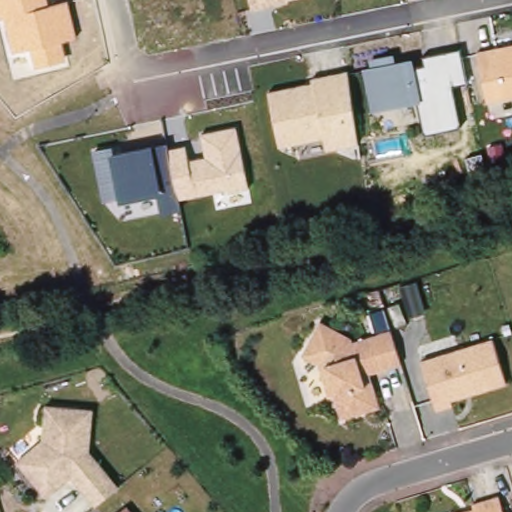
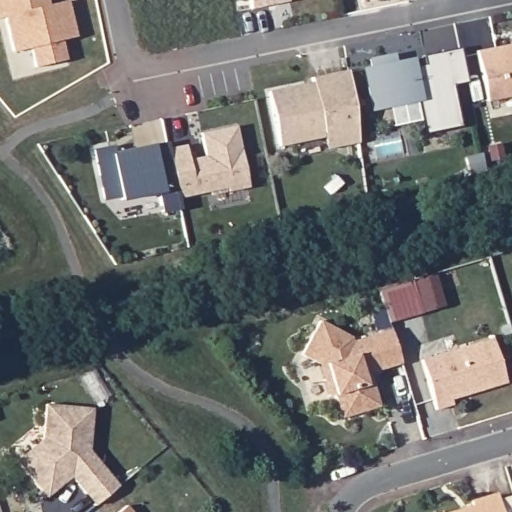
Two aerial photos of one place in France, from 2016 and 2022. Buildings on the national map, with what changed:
unchanged [(49,5),(69,0),(77,38),(62,42),(66,60),(33,67),(30,49),(12,53),(5,19),(0,20),(0,0),(48,0),(49,5)]
unchanged [(249,0),(288,0),(288,2),(251,8),(249,0)]
unchanged [(512,43),(512,100),(488,105),(475,51),(512,43)]
unchanged [(371,68),(369,60),(392,54),(394,62),(413,58),(416,67),(424,65),(423,57),(459,48),(466,85),(450,88),(458,129),(422,135),(415,103),(367,112),(360,71),(371,68)]
unchanged [(268,91),(313,83),(312,78),(349,70),(359,143),(325,149),(323,137),(279,146),(268,91)]
unchanged [(93,149),(114,145),(116,153),(152,146),(167,143),(168,149),(186,145),(189,159),(205,156),(201,133),(238,126),(249,188),(227,193),(226,188),(179,199),(181,210),(162,214),(156,194),(120,201),(119,198),(104,201),(93,149)]
new [(378,288),(412,278),(435,272),(444,305),(422,311),(388,321),(389,325),(376,329),(370,312),(384,308),(378,288)]
unchanged [(318,363),(301,354),(319,320),(350,337),(351,341),(390,329),(397,351),(400,363),(369,372),(371,382),(379,406),(341,417),(334,394),(328,396),(318,363)]
unchanged [(420,359),(492,338),(505,382),(450,399),(452,404),(435,409),(420,359)]
unchanged [(20,464),(17,460),(42,439),(45,404),(92,408),(89,450),(109,474),(86,493),(71,476),(47,496),(43,492),(20,464)]
unchanged [(503,512),(459,512),(462,511),(474,507),(472,502),(498,494),(503,512)]
unchanged [(132,512),(118,512),(126,505),(132,512)]

